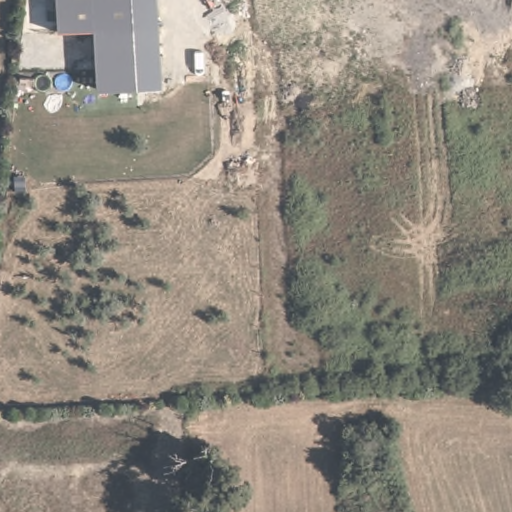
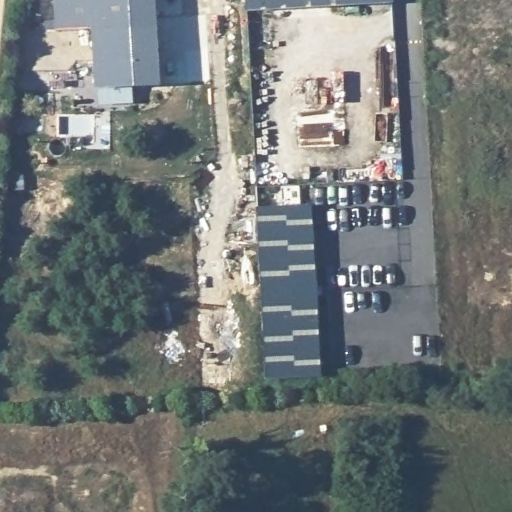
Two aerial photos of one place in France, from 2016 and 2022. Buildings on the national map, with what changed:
unchanged [(55,0),(156,0),(161,85),(97,89),(93,27),(56,28),(55,0)]
unchanged [(247,0),(393,0),(393,2),(247,9),(247,0)]
new [(322,377),(267,380),(257,207),(312,205),(322,377)]

